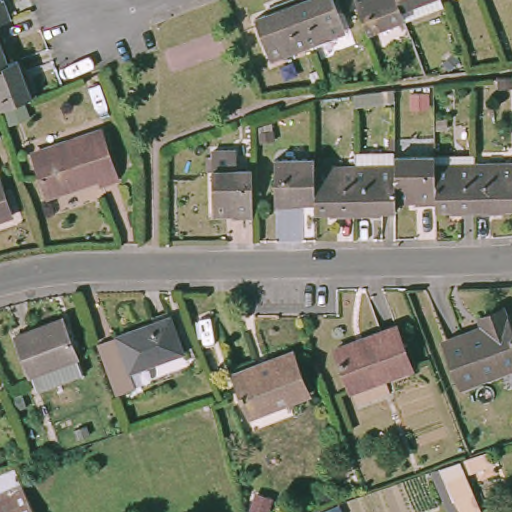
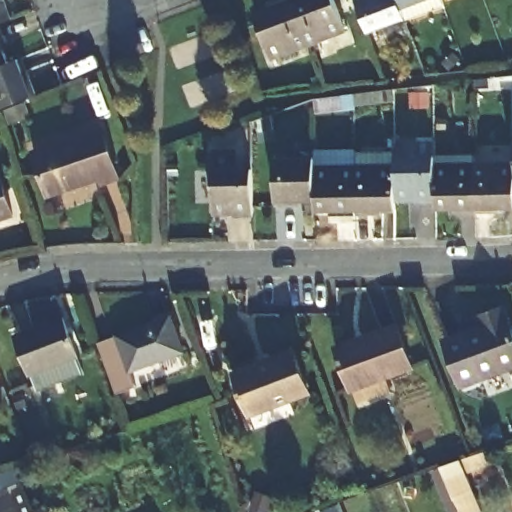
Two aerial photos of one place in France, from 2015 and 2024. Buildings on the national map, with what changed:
unchanged [(0,21),(0,0),(4,0),(10,18),(0,21)]
unchanged [(293,0),(333,0),(346,32),(309,46),(292,1),(293,0)]
unchanged [(397,0),(404,20),(368,34),(355,0),(397,0)]
unchanged [(406,24),(404,20),(397,0),(440,0),(444,9),(406,24)]
unchanged [(309,46),(271,60),(255,19),(274,13),(272,8),(292,1),(309,46)]
unchanged [(0,26),(6,42),(1,44),(8,61),(0,63),(0,26)]
unchanged [(0,63),(8,61),(18,57),(25,77),(29,76),(35,93),(0,106),(0,63)]
unchanged [(356,97),(397,93),(397,107),(356,111),(356,97)]
unchanged [(0,132),(0,129),(1,131),(0,132)]
unchanged [(103,131),(122,181),(105,188),(102,179),(51,199),(35,156),(103,131)]
unchanged [(356,167),(356,152),(397,151),(397,156),(397,166),(396,200),(396,209),(376,209),(376,215),(355,215),(356,167)]
unchanged [(227,223),(228,217),(209,218),(209,156),(231,155),(232,174),(249,174),(249,224),(227,223)]
unchanged [(476,155),(476,165),(476,213),(454,213),(454,208),(435,208),(435,204),(434,156),(476,155)]
unchanged [(435,204),(415,204),(414,200),(396,200),(397,166),(397,156),(434,156),(435,204)]
unchanged [(317,202),(297,201),(297,206),(276,207),(277,159),(317,160),(317,168),(317,202)]
unchanged [(497,207),(497,213),(476,213),(476,165),(512,164),(512,207),(497,207)]
unchanged [(356,167),(355,215),(334,215),(334,211),(317,210),(317,202),(317,168),(356,167)]
unchanged [(0,223),(0,187),(12,219),(0,223)]
unchanged [(442,338),(479,325),(476,315),(499,307),(512,341),(512,363),(458,384),(442,338)]
unchanged [(58,318),(80,375),(34,392),(13,335),(58,318)]
unchanged [(168,319),(181,355),(128,374),(115,336),(168,319)]
unchanged [(393,325),(408,367),(346,390),(331,347),(393,325)]
unchanged [(304,392),(243,416),(228,373),(289,350),(304,392)]
unchanged [(468,464),(486,457),(491,471),(463,481),(476,512),(452,512),(435,475),(457,467),(468,464)]
unchanged [(0,503),(1,503),(0,501),(0,478),(15,473),(32,512),(0,512),(0,503)]

